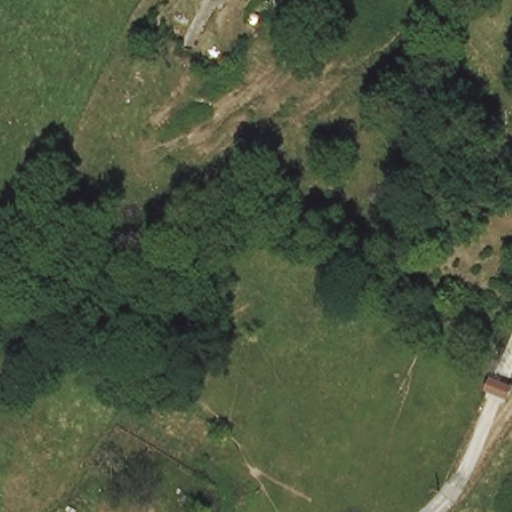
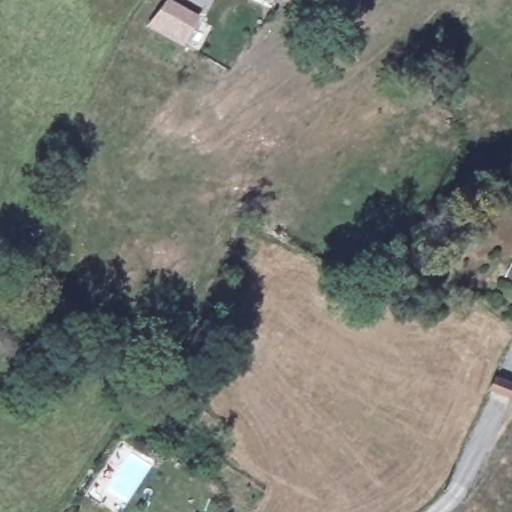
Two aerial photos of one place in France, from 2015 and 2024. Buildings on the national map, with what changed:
new [(146,26),(166,0),(170,0),(198,15),(181,45),(146,26)]

